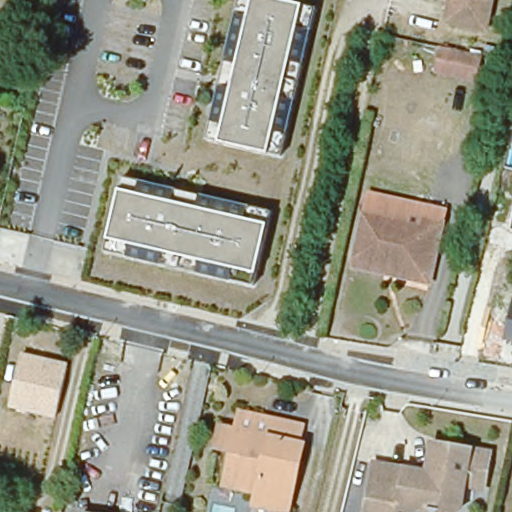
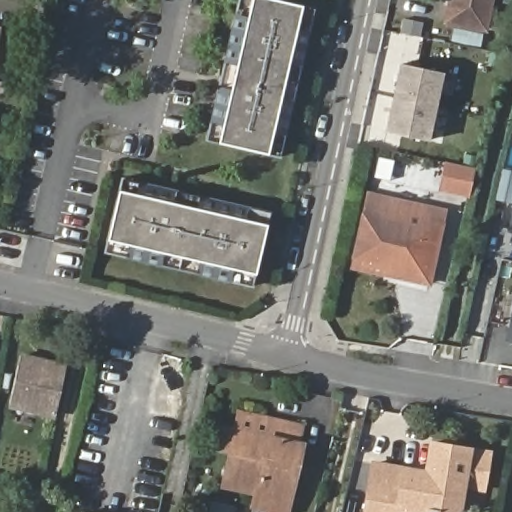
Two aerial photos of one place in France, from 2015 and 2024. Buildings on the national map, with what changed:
unchanged [(282,156),(206,141),(241,0),(282,0),(316,9),(282,156)]
unchanged [(448,0),(494,0),(487,34),(443,25),(448,0)]
demolished [(477,57),(472,86),(431,77),(437,48),(477,57)]
new [(430,141),(385,132),(400,63),(445,74),(430,141)]
new [(451,164),(476,170),(470,197),(445,192),(451,164)]
unchanged [(255,286),(107,252),(125,178),(272,213),(255,286)]
unchanged [(422,228),(421,235),(367,225),(363,224),(371,192),(446,206),(438,231),(422,228)]
unchanged [(511,229),(512,222),(512,229),(511,229)]
unchanged [(356,263),(363,224),(421,235),(422,228),(438,231),(427,289),(386,281),(353,275),(356,263)]
unchanged [(503,340),(512,306),(512,342),(503,340)]
unchanged [(56,418),(9,407),(22,352),(69,362),(56,418)]
unchanged [(205,446),(202,446),(197,445),(189,443),(197,407),(205,408),(213,410),(205,446)]
unchanged [(249,495),(216,489),(217,477),(223,452),(209,449),(215,421),(230,424),(233,411),(261,417),(292,422),(288,440),(294,441),(281,501),(278,512),(262,512),(247,508),(249,495)]
unchanged [(428,432),(488,444),(478,488),(459,483),(453,508),(393,495),(390,512),(357,512),(370,453),(422,466),(428,432)]

